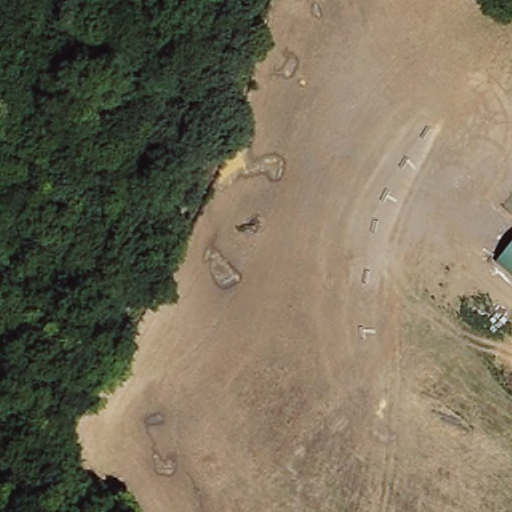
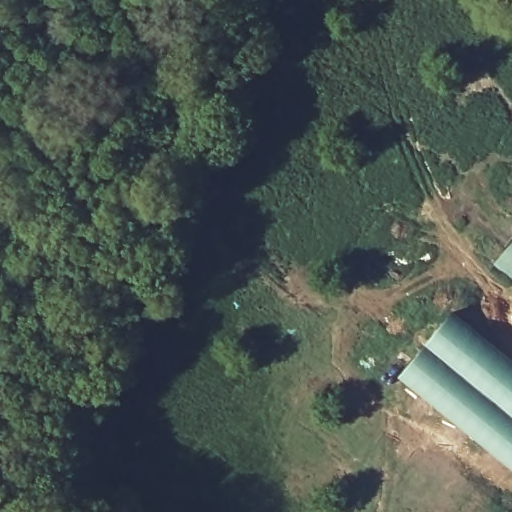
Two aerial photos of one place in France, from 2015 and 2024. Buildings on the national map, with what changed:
unchanged [(512,246),(512,273),(499,262),(512,246)]
new [(512,360),(512,471),(397,377),(451,311),(512,360)]

